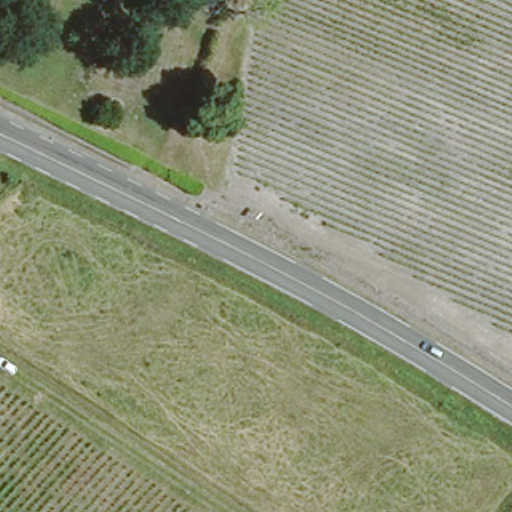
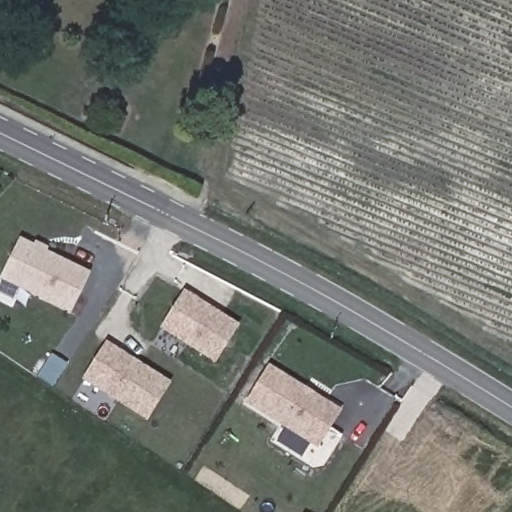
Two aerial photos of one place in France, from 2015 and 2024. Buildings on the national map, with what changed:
new [(90,273),(71,310),(4,277),(23,240),(90,273)]
new [(236,327),(214,362),(162,329),(184,294),(236,327)]
new [(169,385),(147,420),(85,380),(108,345),(169,385)]
new [(69,365),(54,387),(38,377),(53,355),(69,365)]
new [(341,406),(318,440),(249,397),(272,362),(341,406)]

